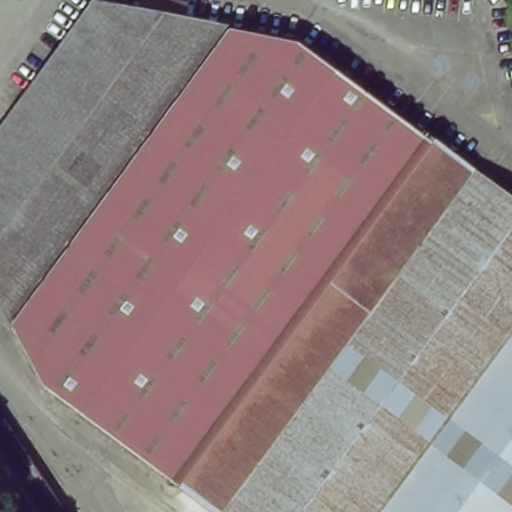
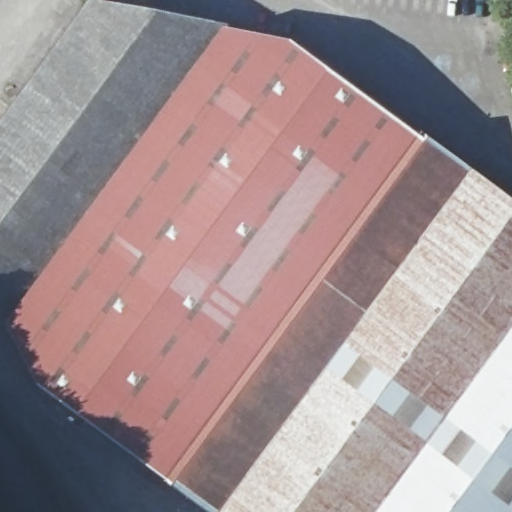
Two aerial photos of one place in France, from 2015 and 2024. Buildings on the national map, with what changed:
unchanged [(35,377),(0,311),(0,123),(92,1),(286,36),(512,201),(512,512),(216,512),(35,377)]

